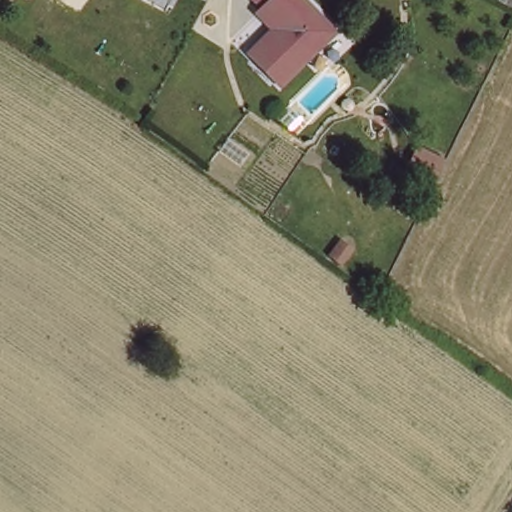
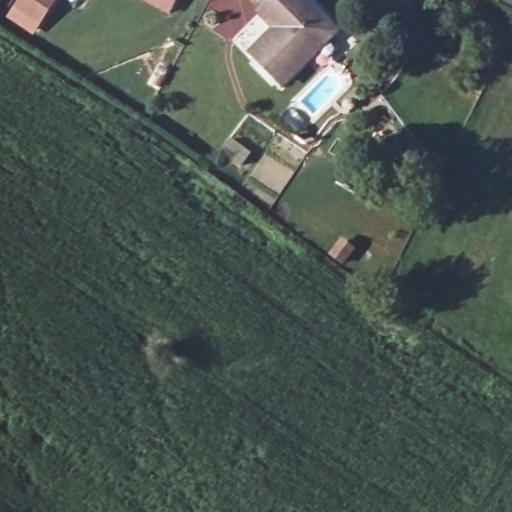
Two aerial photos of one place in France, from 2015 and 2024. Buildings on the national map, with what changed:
new [(6,17),(17,0),(57,0),(33,36),(6,17)]
unchanged [(281,81),(251,50),(273,26),(258,13),(244,0),(310,0),(337,27),(281,81)]

